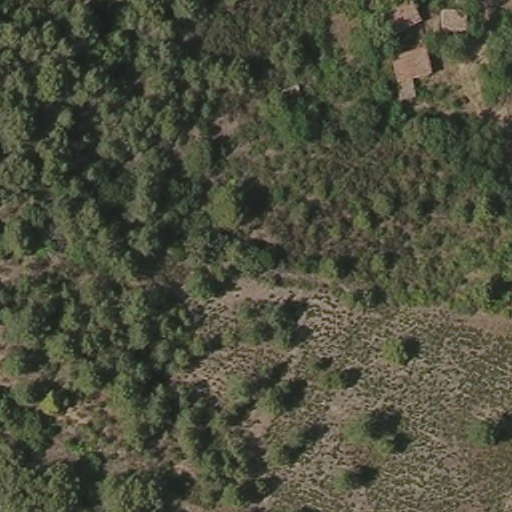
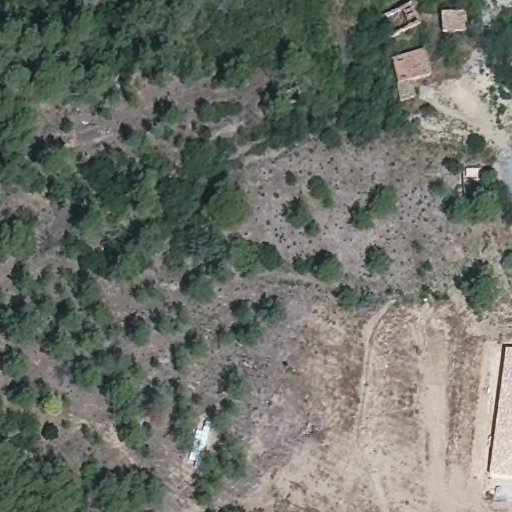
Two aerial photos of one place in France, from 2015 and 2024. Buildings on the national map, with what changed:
unchanged [(374,19),(394,10),(408,2),(419,23),(386,40),(374,19)]
unchanged [(444,34),(444,16),(469,14),(469,31),(449,33),(444,34)]
unchanged [(394,56),(428,50),(428,52),(432,76),(416,80),(420,98),(404,101),(400,84),(402,84),(394,56)]
new [(512,348),(512,477),(489,473),(505,347),(512,348)]

